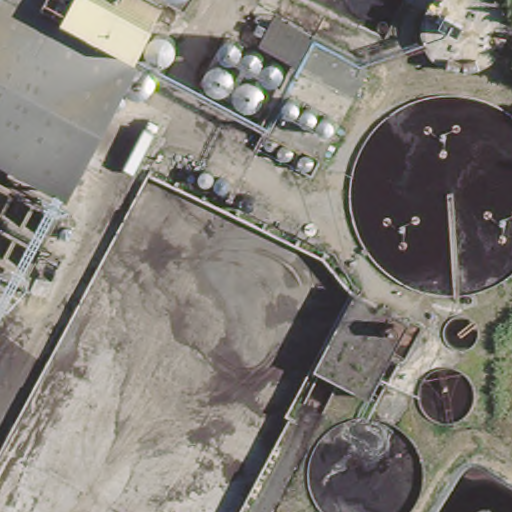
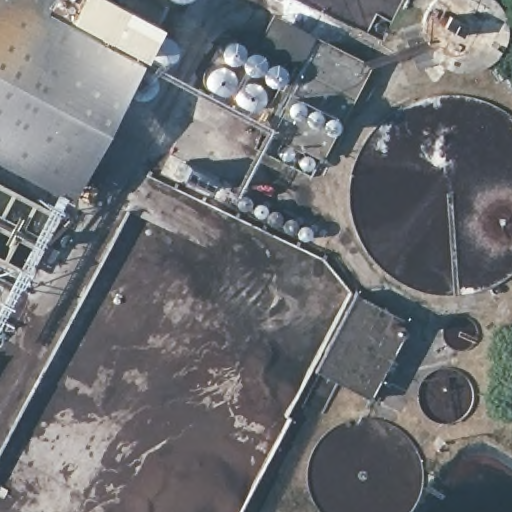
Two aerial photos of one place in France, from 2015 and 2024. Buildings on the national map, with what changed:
unchanged [(166,0),(172,3),(70,200),(0,164),(0,0),(166,0)]
unchanged [(292,62),(255,42),(270,15),(367,62),(319,154),(257,122),(292,62)]
unchanged [(0,261),(0,188),(59,219),(32,277),(0,261)]
unchanged [(410,323),(374,398),(319,370),(356,295),(410,323)]

